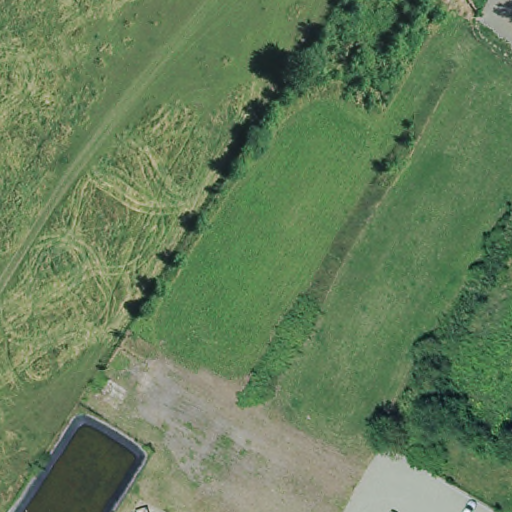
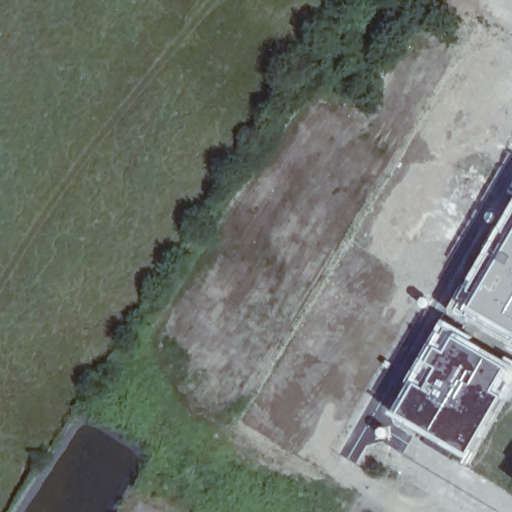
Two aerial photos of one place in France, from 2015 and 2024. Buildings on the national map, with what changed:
new [(487,249),(512,205),(512,335),(475,313),(470,319),(450,308),(457,297),(487,249)]
new [(512,364),(512,366),(498,389),(505,394),(468,457),(392,412),(444,318),(512,364)]

